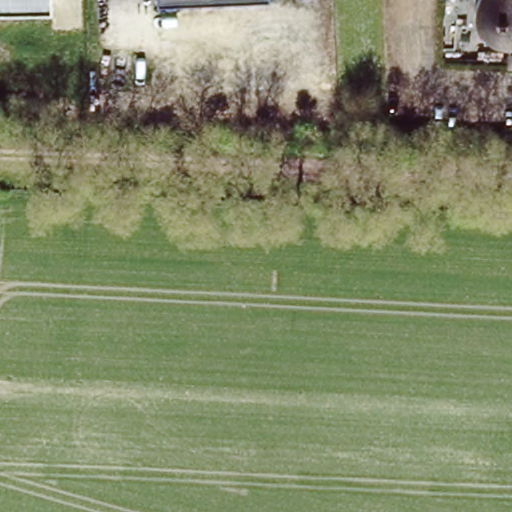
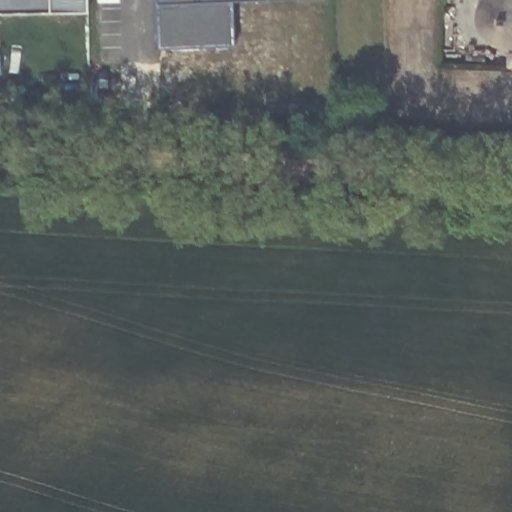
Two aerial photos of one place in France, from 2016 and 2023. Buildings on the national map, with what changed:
unchanged [(0,12),(0,0),(50,0),(50,9),(5,11),(0,12)]
new [(50,9),(50,0),(90,0),(90,10),(50,9)]
new [(159,46),(157,0),(231,0),(234,44),(159,46)]
unchanged [(494,41),(489,44),(475,27),(470,14),(472,0),(512,0),(512,54),(511,44),(494,41)]

